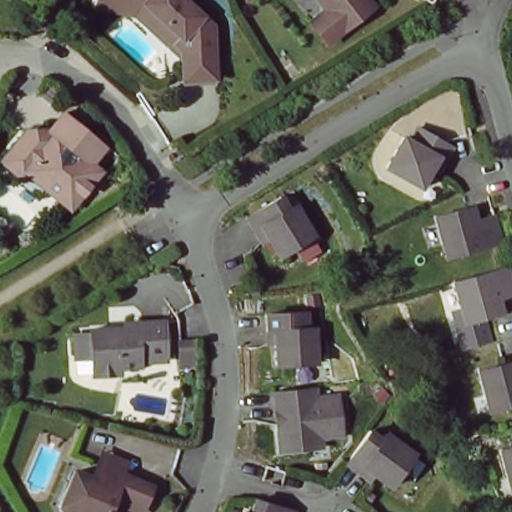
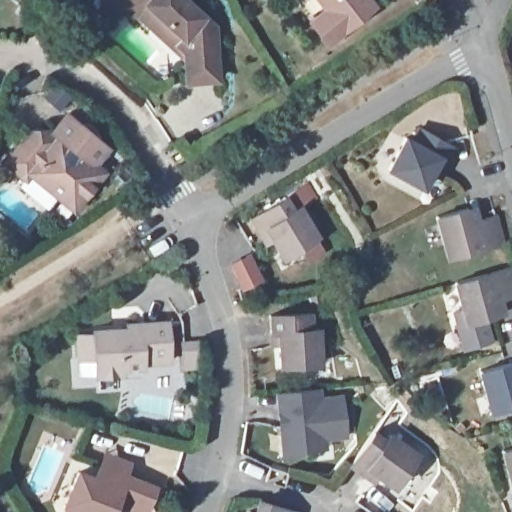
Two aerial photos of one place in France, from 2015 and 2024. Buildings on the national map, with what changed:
unchanged [(94,6),(95,0),(183,0),(211,25),(213,79),(180,81),(179,58),(171,50),(132,15),(94,6)]
unchanged [(332,47),(315,26),(332,14),(321,0),(367,0),(377,12),(332,47)]
unchanged [(56,114),(99,148),(86,164),(95,171),(64,209),(20,174),(16,179),(0,166),(0,154),(19,132),(42,131),(56,114)]
unchanged [(445,175),(445,176),(438,172),(427,192),(393,172),(410,141),(417,145),(424,132),(459,152),(451,165),(446,174),(445,175)]
unchanged [(264,237),(257,223),(291,202),(298,215),(305,211),(323,242),(288,263),(278,245),(271,248),(264,237)]
unchanged [(444,245),(437,216),(469,208),(471,216),(472,222),(495,215),(499,229),(502,242),(457,255),(448,257),(444,245)]
new [(233,268),(250,260),(262,283),(245,292),(233,268)]
unchanged [(460,286),(497,276),(512,272),(512,301),(499,305),(503,319),(496,320),(481,325),(471,327),(468,315),(460,286)]
unchanged [(315,318),(316,333),(324,332),(326,368),(285,370),(284,350),(277,350),(276,336),(275,320),(315,318)]
unchanged [(84,360),(82,334),(99,333),(99,330),(133,327),(133,323),(172,321),(175,361),(148,362),(148,366),(128,368),(128,374),(102,376),(101,358),(84,360)]
unchanged [(479,376),(504,368),(511,367),(512,372),(512,411),(501,414),(491,416),(487,404),(479,376)]
unchanged [(316,450),(288,453),(286,425),(298,424),(297,414),(285,415),(283,393),(285,393),(316,390),(324,389),(325,399),(348,397),(352,436),(328,439),(329,449),(316,450)]
unchanged [(368,479),(355,470),(355,469),(371,447),(379,437),(391,446),(395,440),(424,460),(401,492),(382,480),(377,485),(368,479)]
unchanged [(502,455),(512,452),(512,492),(510,483),(502,455)]
unchanged [(83,475),(101,482),(111,457),(135,468),(131,478),(161,491),(152,512),(134,512),(121,506),(119,512),(69,512),(69,510),(83,475)]
unchanged [(285,512),(261,512),(264,505),(285,512)]

